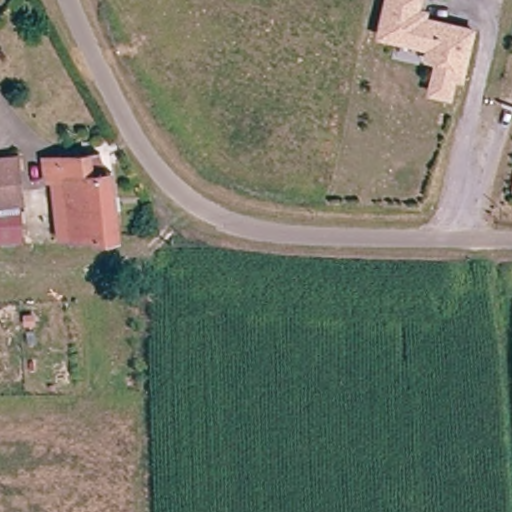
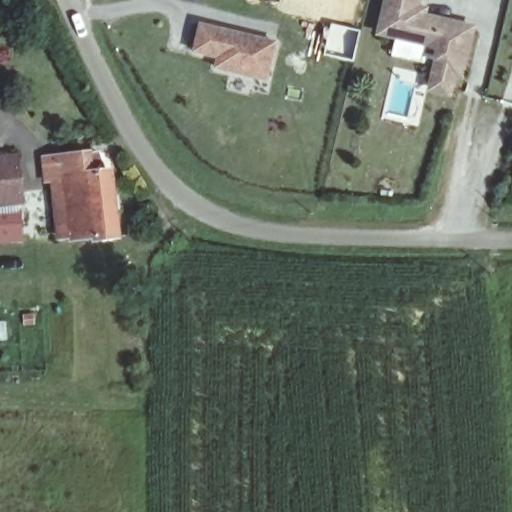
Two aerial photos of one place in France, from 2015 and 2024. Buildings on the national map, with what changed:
unchanged [(460,78),(453,76),(450,91),(431,87),(437,60),(426,58),(428,47),(395,40),(378,36),(379,31),(386,0),(417,0),(415,9),(425,11),(423,19),(471,29),(460,78)]
new [(279,43),(269,82),(215,69),(218,59),(193,53),(199,22),(279,43)]
new [(329,24),(361,31),(353,63),(323,56),(329,24)]
unchanged [(21,206),(0,207),(0,159),(19,158),(21,206)]
unchanged [(64,189),(57,190),(55,168),(100,165),(111,164),(116,183),(121,182),(129,248),(105,250),(105,247),(83,250),(71,251),(64,189)]
unchanged [(19,242),(19,244),(0,244),(0,213),(19,213),(19,242)]

